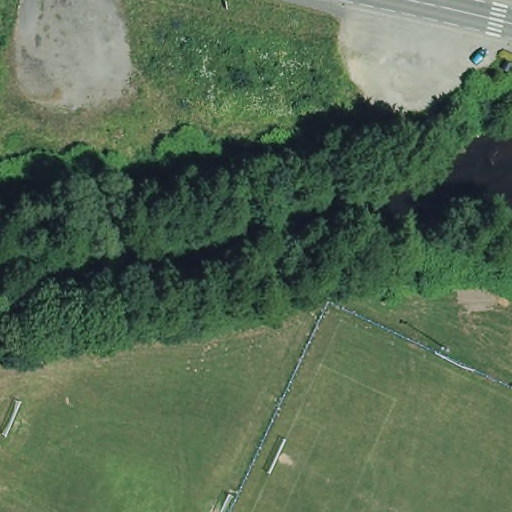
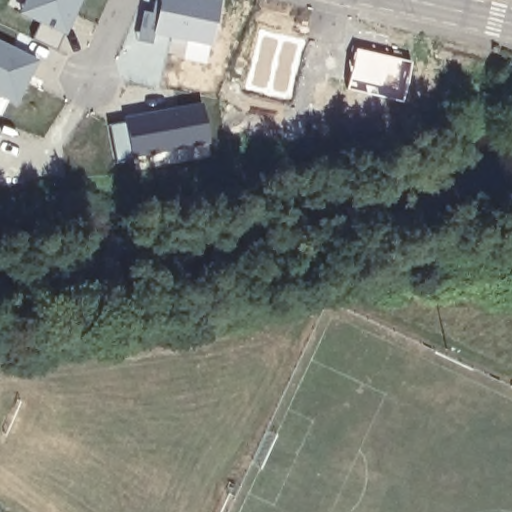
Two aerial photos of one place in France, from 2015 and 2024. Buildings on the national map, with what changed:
new [(45,47),(26,38),(33,23),(4,10),(8,0),(78,0),(64,36),(45,47)]
new [(155,12),(158,0),(219,0),(207,63),(182,56),(185,42),(153,35),(151,43),(135,40),(141,9),(155,12)]
new [(309,43),(293,103),(245,89),(262,32),(309,43)]
new [(33,71),(23,96),(0,95),(0,36),(13,41),(33,71)]
new [(412,62),(403,102),(348,89),(356,47),(412,62)]
new [(120,120),(115,101),(133,94),(144,110),(202,103),(211,150),(109,168),(102,126),(120,120)]

